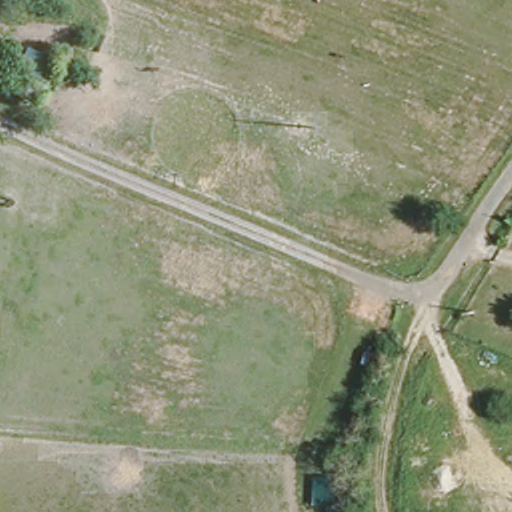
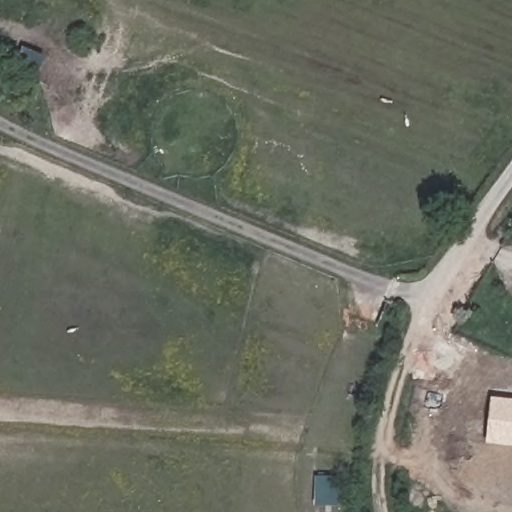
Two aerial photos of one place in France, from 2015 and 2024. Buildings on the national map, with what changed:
new [(491,396),(512,399),(512,447),(486,444),(491,396)]

